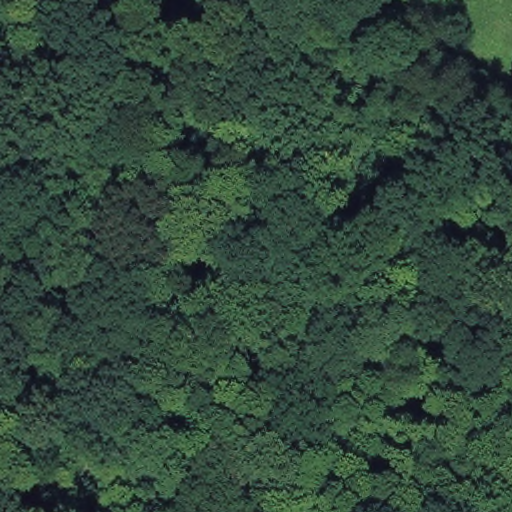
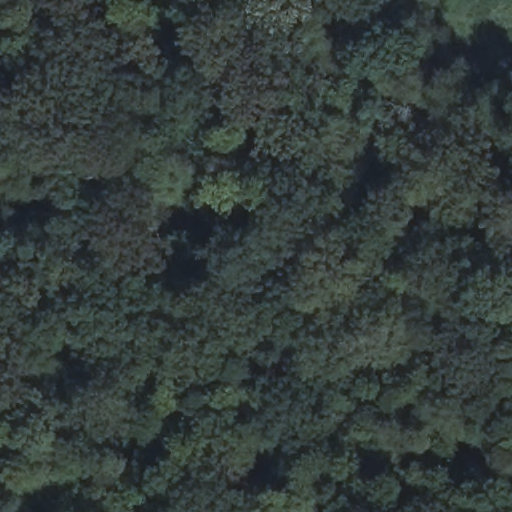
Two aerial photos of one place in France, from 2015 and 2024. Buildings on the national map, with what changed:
[]

